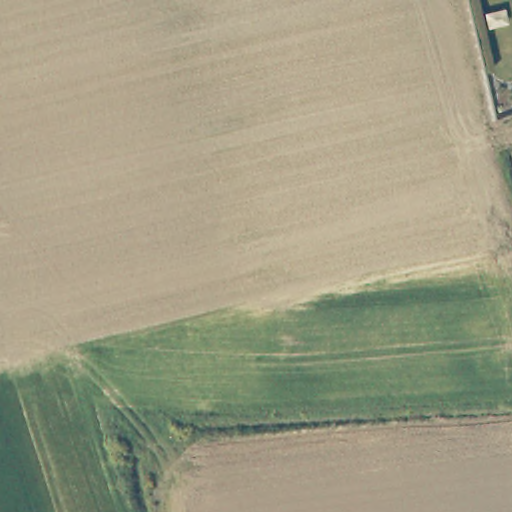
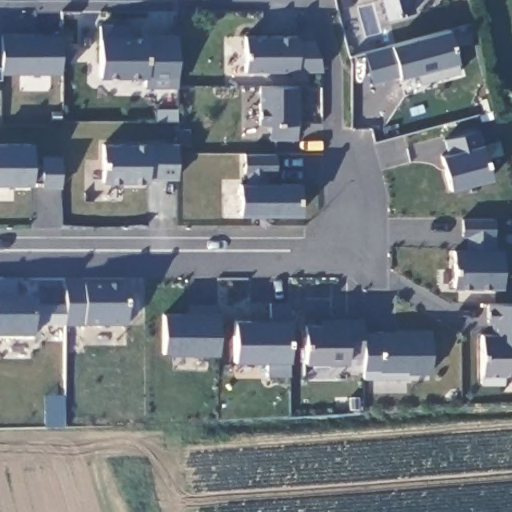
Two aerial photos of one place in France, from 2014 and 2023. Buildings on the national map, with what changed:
new [(388,19),(385,0),(415,0),(417,11),(388,19)]
new [(179,87),(145,89),(146,78),(101,79),(99,25),(132,25),(131,36),(147,36),(176,34),(179,87)]
new [(423,84),(423,74),(401,80),(372,86),(362,53),(391,46),(448,30),(457,64),(461,74),(423,84)]
new [(1,70),(1,35),(60,35),(60,75),(2,75),(1,70)]
new [(313,39),(323,74),(247,72),(247,39),(313,39)]
new [(2,80),(0,80),(0,70),(1,70),(2,80)]
new [(267,142),(267,126),(259,126),(260,87),(297,87),(298,126),(299,142),(267,142)]
new [(451,192),(442,158),(448,156),(444,141),(477,132),(491,181),(451,192)]
new [(61,189),(41,189),(42,177),(32,177),(32,185),(0,185),(0,144),(32,144),(32,155),(61,156),(61,189)]
new [(149,144),(177,144),(177,179),(148,179),(148,184),(101,182),(104,144),(149,144)]
new [(241,188),(252,188),(252,174),(249,172),(248,156),(278,155),(277,175),(268,175),(268,187),(301,187),(301,216),(241,215),(241,188)]
new [(452,288),(452,250),(472,250),(467,237),(460,237),(460,221),(493,221),(494,250),(500,250),(501,286),(452,288)]
new [(35,326),(33,339),(0,339),(0,277),(17,277),(15,297),(32,298),(32,305),(64,305),(64,325),(35,326)]
new [(128,327),(64,328),(64,286),(129,285),(128,327)]
new [(289,320),(288,361),(288,376),(266,376),(268,362),(234,363),(232,320),(271,320),(271,302),(290,303),(289,320)]
new [(162,355),(162,312),(188,313),(187,303),(218,305),(217,313),(217,355),(162,355)]
new [(499,336),(500,325),(490,325),(492,305),(512,305),(512,377),(503,377),(502,385),(481,384),(483,337),(499,336)]
new [(432,376),(406,376),(406,380),(361,380),(362,354),(349,354),(348,365),(300,364),(301,325),(320,326),(318,320),(363,320),(363,332),(432,332),(432,376)]

